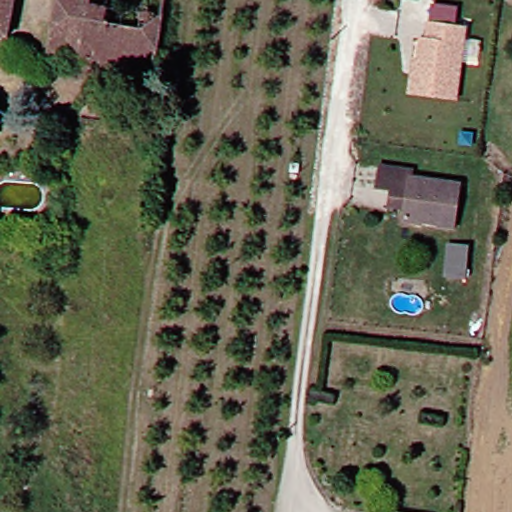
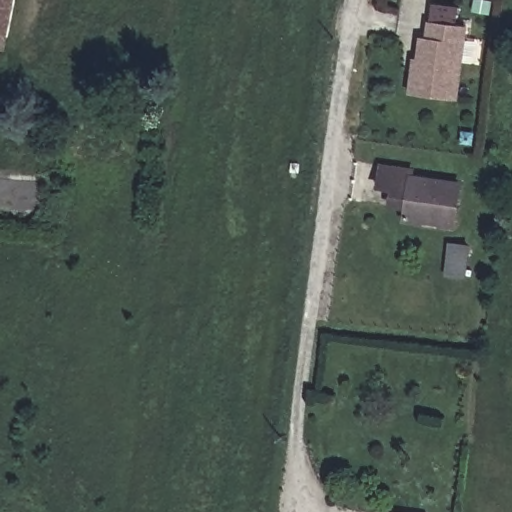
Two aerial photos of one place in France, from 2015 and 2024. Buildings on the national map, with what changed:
unchanged [(0,37),(0,0),(11,0),(2,37),(0,37)]
demolished [(140,64),(135,85),(40,65),(50,23),(77,27),(82,0),(163,0),(149,65),(140,64)]
unchanged [(421,60),(424,38),(430,39),(432,22),(468,27),(458,100),(412,94),(415,72),(417,60),(421,60)]
unchanged [(453,187),(450,229),(400,221),(402,207),(370,202),(372,187),(375,167),(407,171),(406,181),(453,187)]
unchanged [(445,279),(450,246),(466,249),(461,281),(445,279)]

